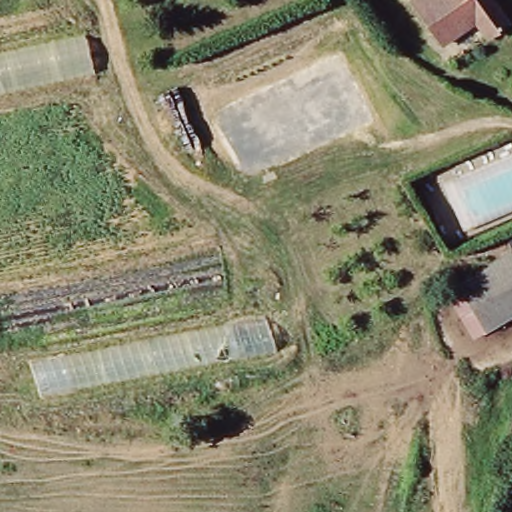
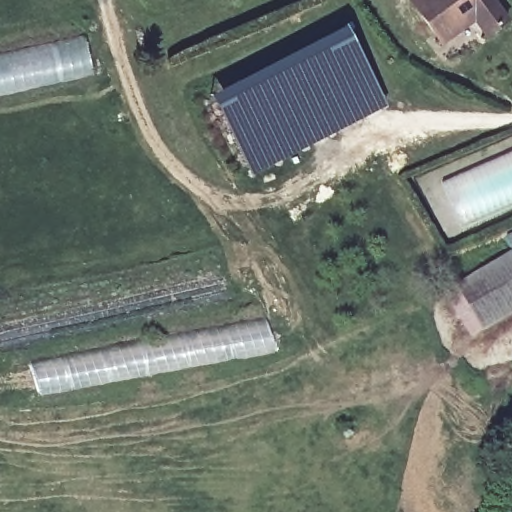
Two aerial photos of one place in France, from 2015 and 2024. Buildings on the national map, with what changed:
unchanged [(507,17),(494,25),(482,33),(474,22),(436,44),(409,0),(495,0),(507,17)]
new [(211,96),(344,27),(385,105),(253,173),(211,96)]
unchanged [(93,77),(0,98),(0,57),(84,37),(93,77)]
unchanged [(464,238),(443,185),(512,154),(512,216),(464,238)]
unchanged [(512,259),(512,314),(469,334),(447,289),(512,259)]
unchanged [(30,368),(266,322),(276,358),(40,400),(30,368)]

